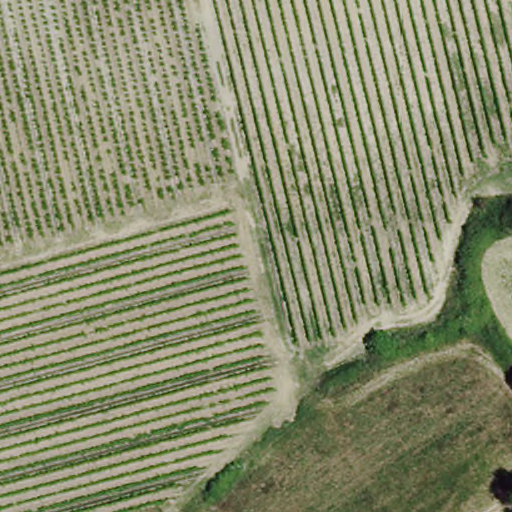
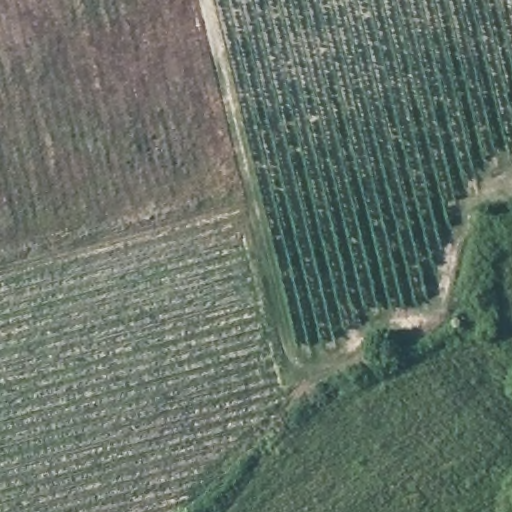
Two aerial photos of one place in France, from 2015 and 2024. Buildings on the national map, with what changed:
[]

